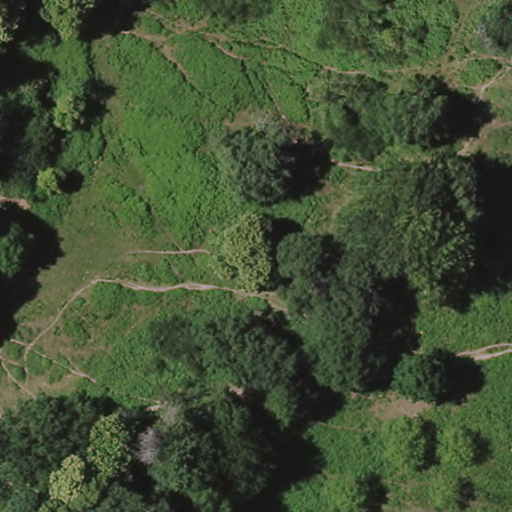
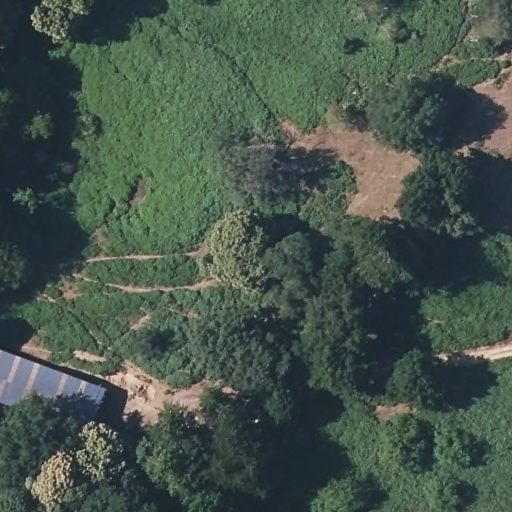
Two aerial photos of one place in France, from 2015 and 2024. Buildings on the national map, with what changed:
new [(108,392),(91,442),(0,407),(0,354),(108,392)]

